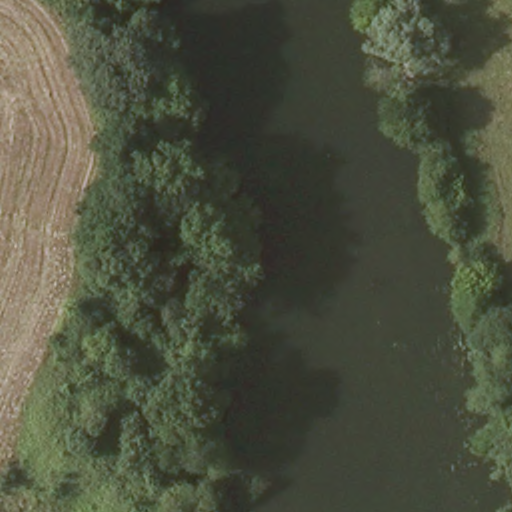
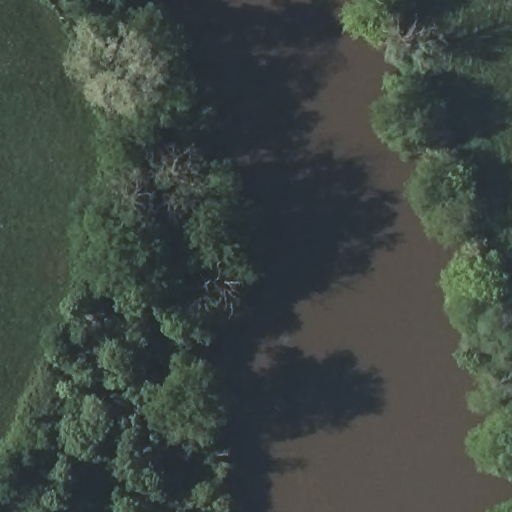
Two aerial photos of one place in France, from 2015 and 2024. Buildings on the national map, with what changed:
[]

